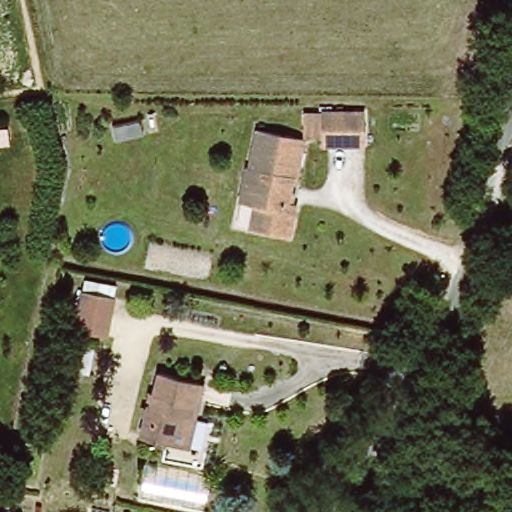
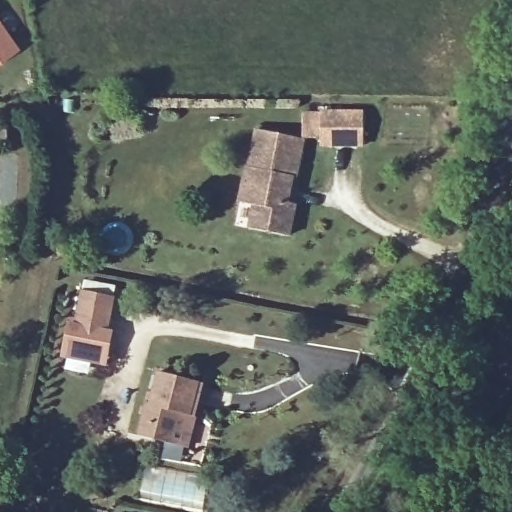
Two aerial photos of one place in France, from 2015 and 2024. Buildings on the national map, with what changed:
new [(20,52),(0,65),(0,21),(20,52)]
unchanged [(330,146),(324,137),(306,139),(304,112),(322,111),(364,113),(362,147),(330,146)]
unchanged [(287,204),(295,205),(290,237),(250,230),(255,206),(239,201),(258,130),(305,138),(287,204)]
new [(68,316),(74,317),(84,277),(117,283),(110,328),(115,330),(108,367),(60,358),(68,316)]
unchanged [(133,440),(142,408),(147,409),(157,372),(203,385),(185,453),(133,440)]

